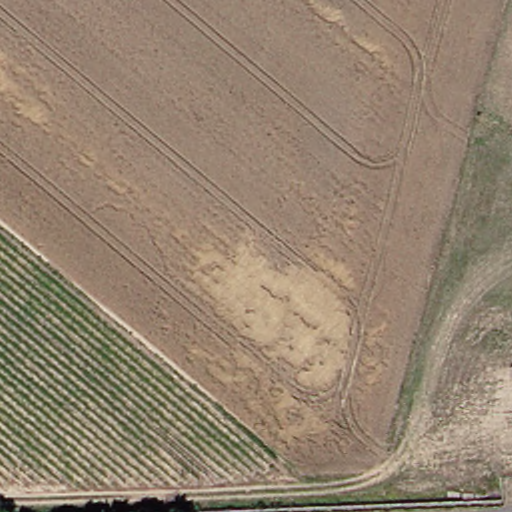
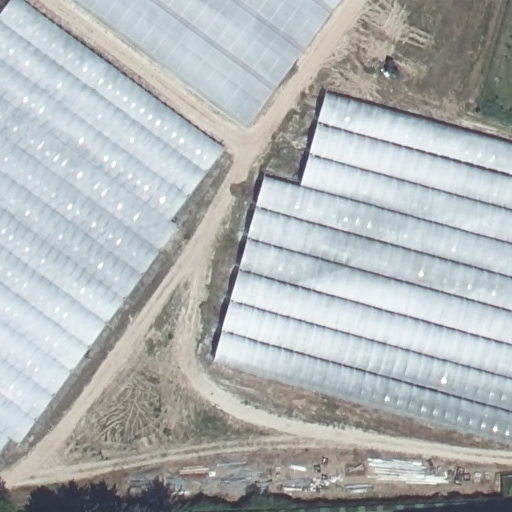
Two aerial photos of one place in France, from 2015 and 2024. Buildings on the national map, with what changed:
new [(20,0),(223,149),(169,223),(177,229),(17,447),(9,441),(0,454),(0,13),(10,0),(20,0)]
new [(71,0),(340,0),(245,129),(71,0)]
new [(298,187),(325,94),(512,146),(512,447),(213,363),(261,178),(298,187)]

